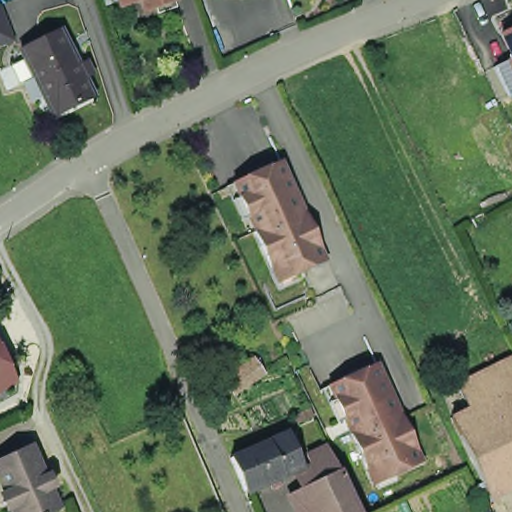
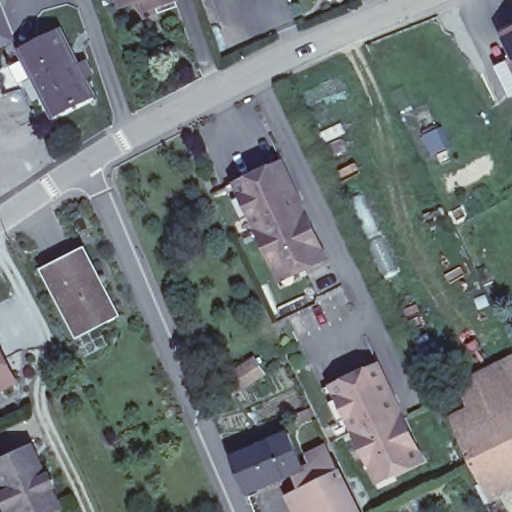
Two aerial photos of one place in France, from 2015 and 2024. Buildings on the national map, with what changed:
unchanged [(121,0),(135,0),(122,4),(121,0)]
unchanged [(153,0),(170,0),(154,5),(153,0)]
unchanged [(14,39),(0,45),(0,5),(14,39)]
unchanged [(498,35),(512,27),(512,74),(506,62),(511,60),(498,35)]
unchanged [(64,32),(97,96),(58,115),(25,52),(64,32)]
unchanged [(274,271),(254,227),(259,225),(253,212),(248,214),(242,217),(226,183),(233,180),(282,157),(298,191),(292,194),(301,214),(306,212),(327,257),(298,270),(279,279),(274,271)]
new [(121,316),(76,338),(40,269),(86,246),(121,316)]
unchanged [(13,377),(0,384),(0,351),(13,377)]
unchanged [(269,374),(236,393),(225,375),(253,352),(269,374)]
unchanged [(371,473),(352,432),(356,427),(349,415),(345,417),(338,421),(322,387),(329,383),(378,361),(393,394),(388,397),(397,417),(403,415),(423,460),(394,473),(375,482),(371,473)]
unchanged [(469,412),(459,389),(512,363),(512,452),(496,421),(460,438),(452,421),(469,412)]
unchanged [(460,438),(496,421),(512,452),(512,474),(484,487),(460,438)]
unchanged [(309,455),(327,446),(331,453),(360,512),(316,512),(302,486),(304,466),(306,466),(305,463),(299,467),(249,488),(233,455),(271,437),(293,428),(309,465),(313,462),(309,455)]
unchanged [(65,483),(60,497),(68,512),(26,512),(15,507),(0,502),(0,471),(6,468),(41,452),(43,457),(53,480),(65,483)]

